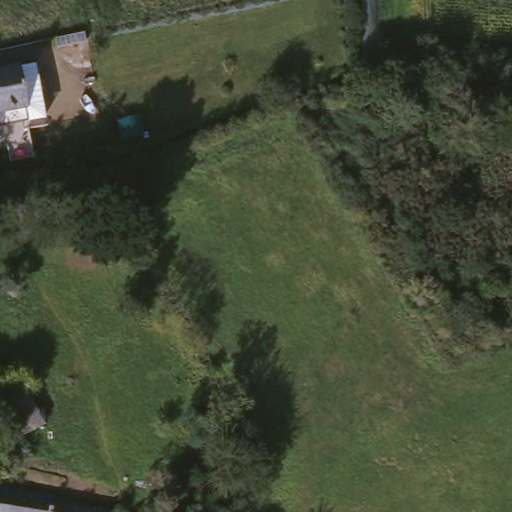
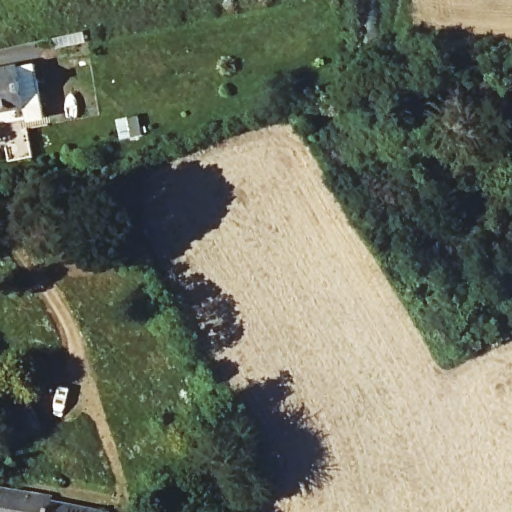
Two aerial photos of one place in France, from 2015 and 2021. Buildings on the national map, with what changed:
unchanged [(0,108),(0,68),(26,63),(41,60),(52,114),(36,116),(33,101),(0,108)]
unchanged [(52,429),(19,446),(0,408),(0,396),(27,382),(52,429)]
unchanged [(59,498),(61,503),(112,512),(0,512),(0,489),(59,498)]

